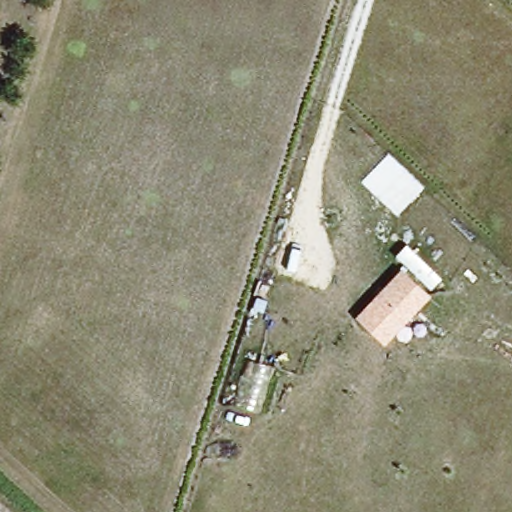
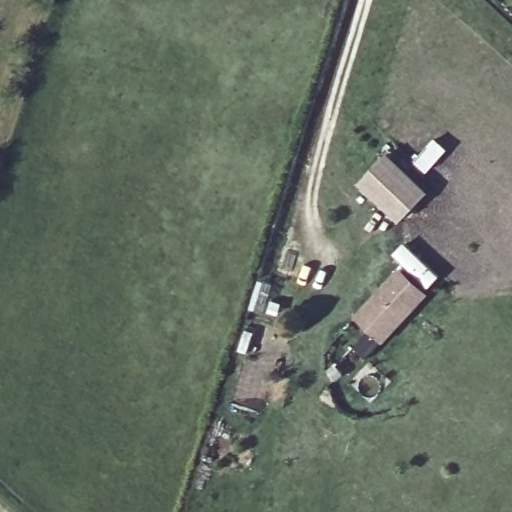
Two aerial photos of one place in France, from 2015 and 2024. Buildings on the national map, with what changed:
new [(429,190),(401,222),(359,182),(388,152),(429,190)]
unchanged [(429,294),(383,343),(354,316),(399,267),(429,294)]

